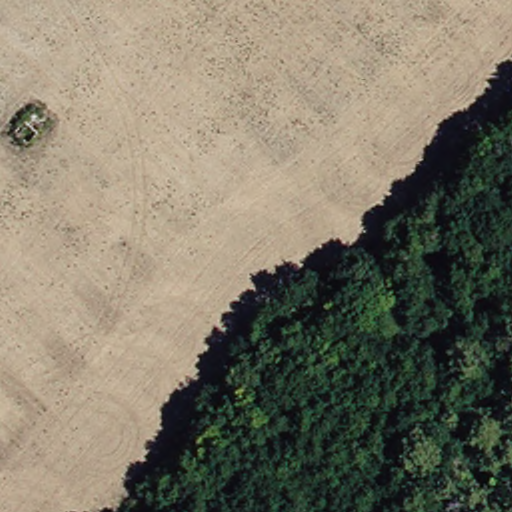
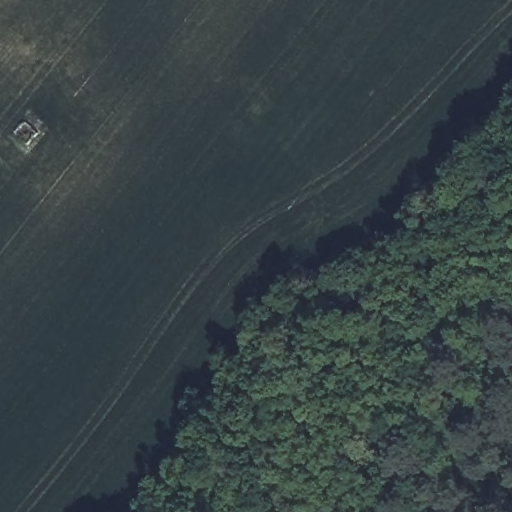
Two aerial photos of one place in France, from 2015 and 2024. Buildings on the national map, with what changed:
unchanged [(45,111),(54,125),(27,146),(18,131),(45,111)]

